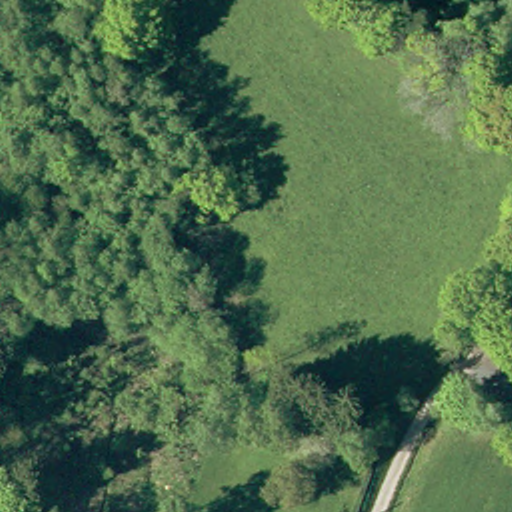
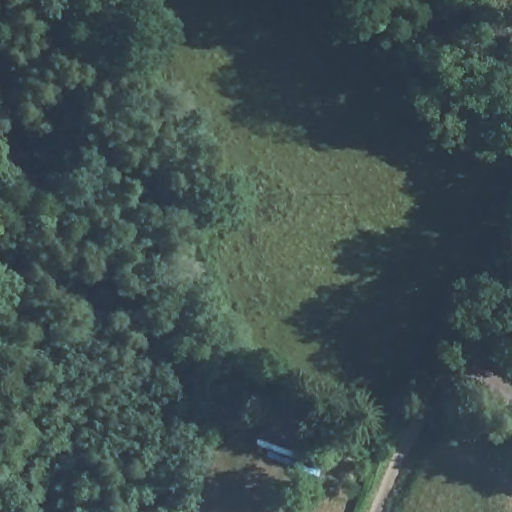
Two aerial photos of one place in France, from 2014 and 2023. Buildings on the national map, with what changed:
[]

